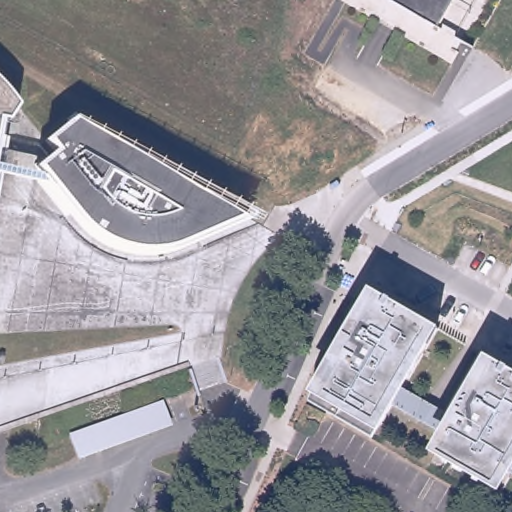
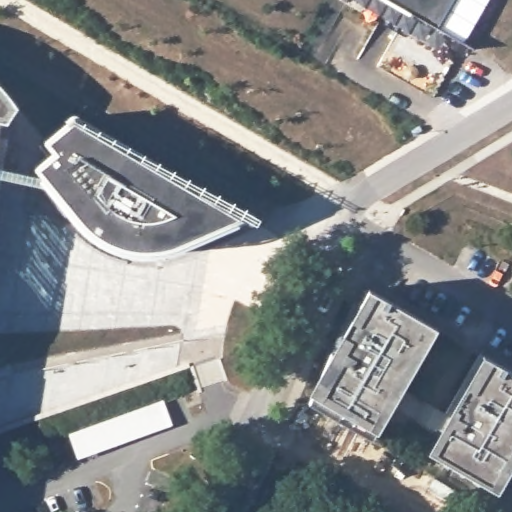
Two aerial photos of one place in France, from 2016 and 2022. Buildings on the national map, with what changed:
unchanged [(385,0),(474,0),(452,39),(385,0)]
unchanged [(19,100),(22,106),(12,123),(0,190),(0,80),(14,95),(19,100)]
unchanged [(207,245),(184,254),(179,256),(174,257),(169,258),(164,258),(159,259),(154,259),(149,258),(144,258),(140,257),(135,256),(129,254),(125,253),(120,251),(117,249),(111,246),(107,243),(102,241),(99,238),(95,234),(91,230),(45,172),(64,157),(55,146),(84,122),(256,223),(207,245)]
unchanged [(436,333),(402,390),(391,410),(372,444),(308,408),(343,329),(345,326),(353,305),(361,309),(370,294),(436,333)]
unchanged [(511,471),(507,477),(497,496),(433,459),(445,438),(436,433),(441,424),(446,415),(453,403),(479,358),(482,360),(512,376),(512,469),(511,471)]
unchanged [(435,435),(391,410),(402,390),(446,415),(441,424),(436,433),(435,435)]
unchanged [(78,459),(70,434),(163,401),(171,425),(78,459)]
unchanged [(507,477),(511,471),(512,469),(512,480),(507,477)]

